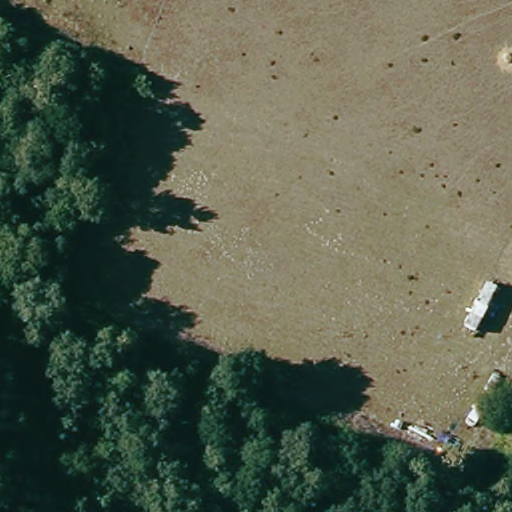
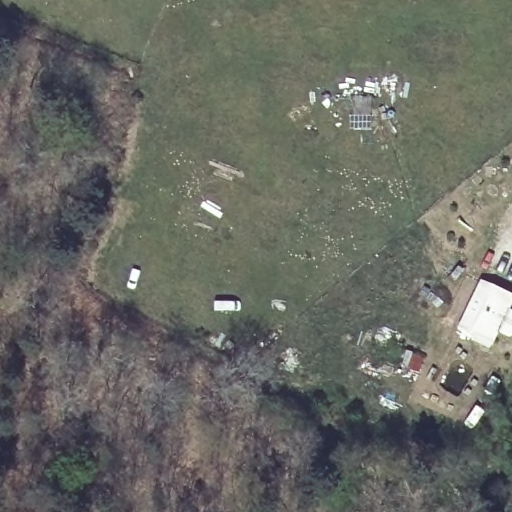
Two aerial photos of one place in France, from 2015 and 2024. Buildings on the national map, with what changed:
new [(480,279),(512,293),(512,304),(510,307),(512,309),(512,334),(498,333),(490,347),(454,331),(480,279)]

